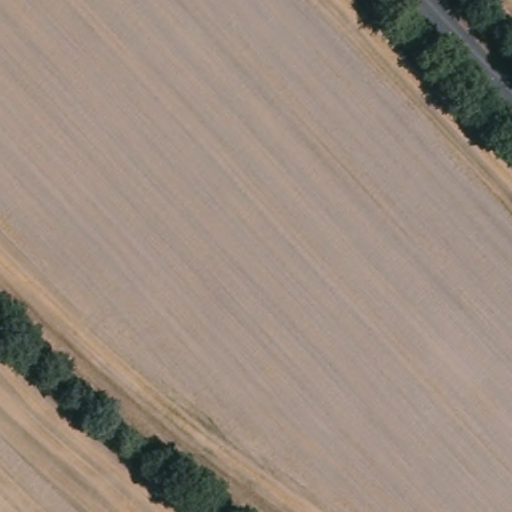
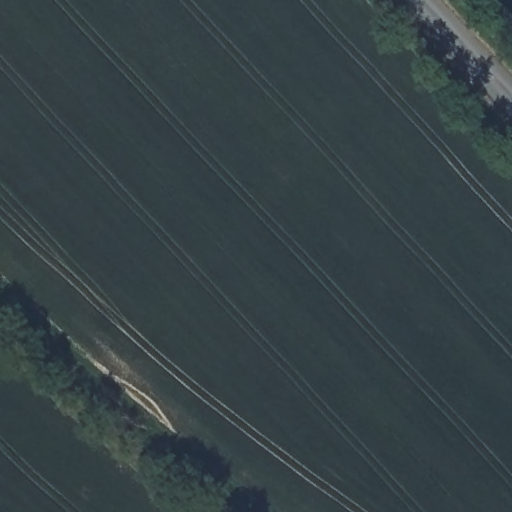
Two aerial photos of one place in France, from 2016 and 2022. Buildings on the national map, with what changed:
[]

